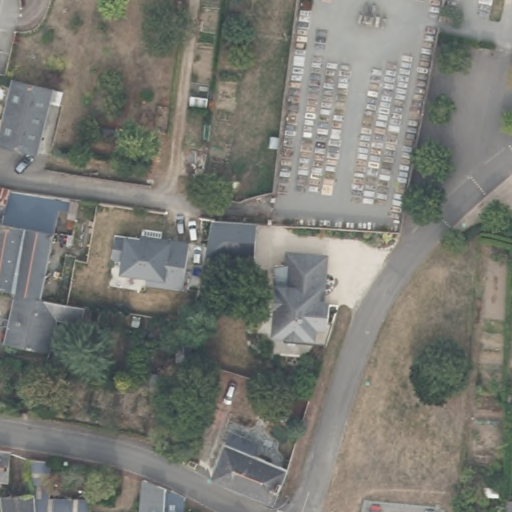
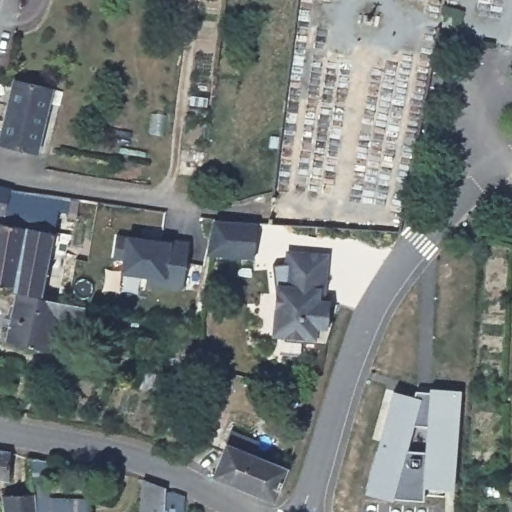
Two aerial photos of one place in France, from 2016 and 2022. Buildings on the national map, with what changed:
unchanged [(0,149),(0,112),(6,85),(54,96),(51,108),(40,106),(28,155),(0,149)]
unchanged [(17,293),(0,290),(0,186),(74,199),(71,213),(60,211),(41,298),(17,293)]
unchanged [(255,264),(208,259),(216,221),(260,225),(255,264)]
unchanged [(147,285),(150,279),(121,273),(123,259),(114,258),(118,235),(130,237),(172,244),(186,249),(181,291),(147,285)]
unchanged [(301,342),(301,336),(272,335),(273,310),(269,266),(285,265),(285,255),(323,257),(321,294),(321,303),(329,303),(328,321),(332,321),(327,336),(324,343),(301,342)]
unchanged [(57,316),(51,351),(8,342),(17,293),(41,298),(51,300),(86,307),(83,320),(57,316)]
new [(460,390),(453,491),(421,488),(420,501),(391,499),(364,493),(392,391),(413,397),(413,390),(429,391),(429,388),(460,390)]
demolished [(189,440),(190,426),(192,395),(206,397),(204,428),(200,427),(200,441),(189,440)]
unchanged [(231,432),(252,440),(257,443),(253,454),(282,466),(271,500),(213,477),(231,432)]
unchanged [(4,482),(0,482),(0,453),(7,454),(7,456),(4,482)]
unchanged [(25,498),(17,458),(28,460),(34,488),(44,488),(44,501),(82,503),(82,512),(28,512),(25,498)]
unchanged [(133,485),(134,485),(155,492),(154,501),(158,501),(159,495),(170,502),(170,512),(131,512),(133,485)]
unchanged [(502,497),(512,496),(512,512),(503,512),(502,497)]
unchanged [(25,498),(28,512),(0,512),(0,500),(25,498)]

